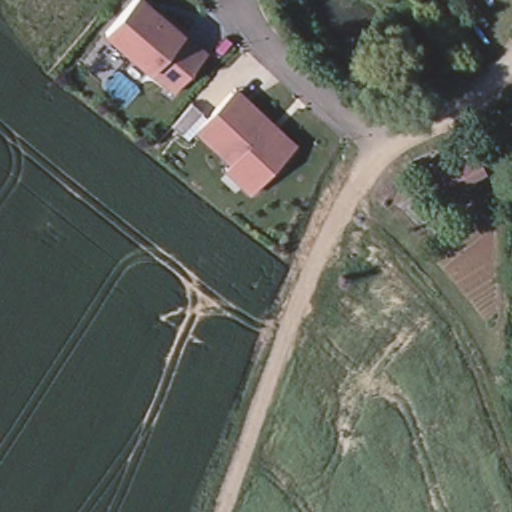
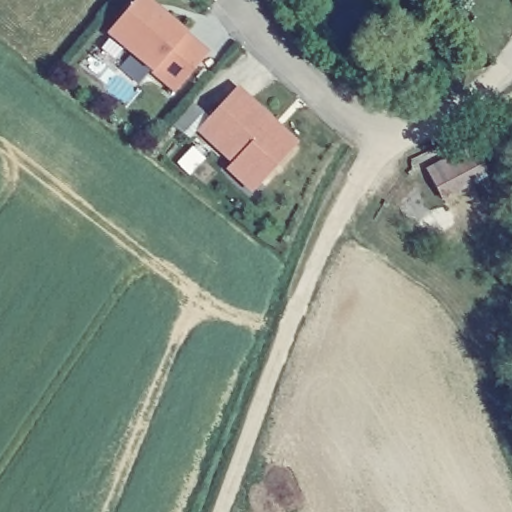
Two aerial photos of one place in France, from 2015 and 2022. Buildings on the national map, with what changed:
unchanged [(173,93),(106,35),(136,0),(142,0),(206,54),(173,93)]
unchanged [(223,169),(228,162),(195,130),(198,126),(230,92),(233,88),(292,145),(289,148),(257,182),(248,192),(223,169)]
unchanged [(492,173),(445,205),(432,186),(480,154),(492,173)]

